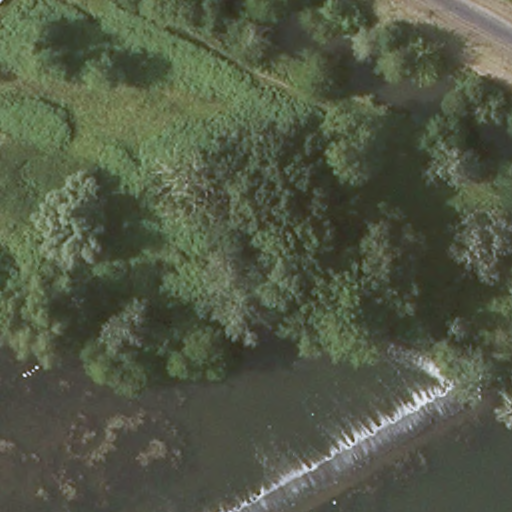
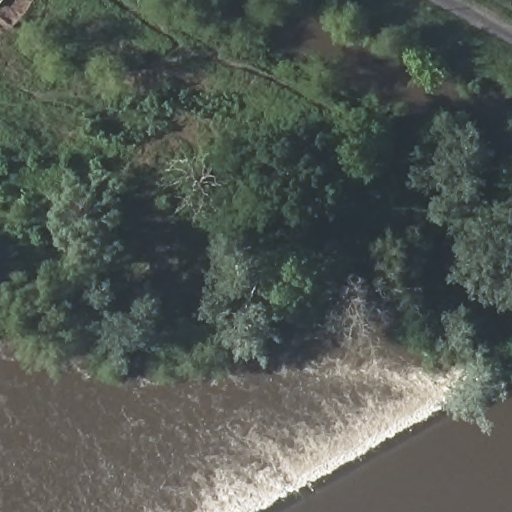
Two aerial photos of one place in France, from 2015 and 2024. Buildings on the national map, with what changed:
unchanged [(0,0),(5,0),(0,4),(0,0)]

